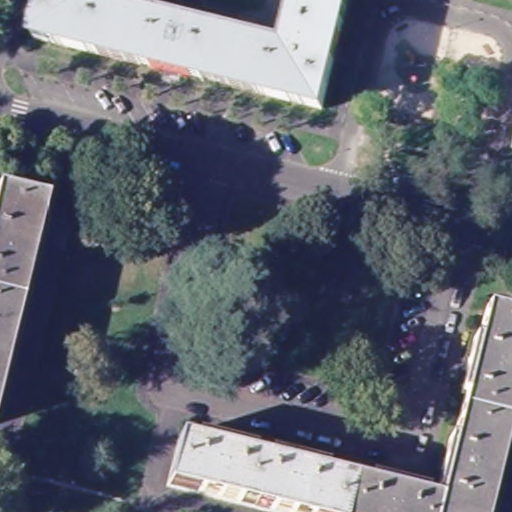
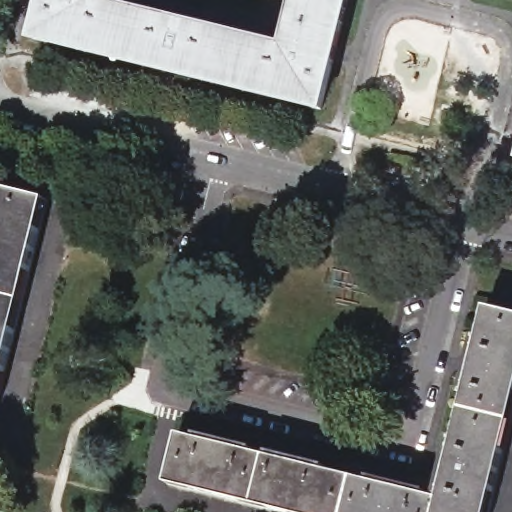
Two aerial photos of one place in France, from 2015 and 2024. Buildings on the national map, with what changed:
unchanged [(96,1),(282,47),(294,0),(349,0),(321,107),(36,39),(45,0),(96,0),(96,1)]
unchanged [(0,394),(0,190),(47,201),(0,394)]
unchanged [(488,512),(279,512),(169,485),(181,435),(438,499),(486,307),(512,314),(512,415),(488,512)]

